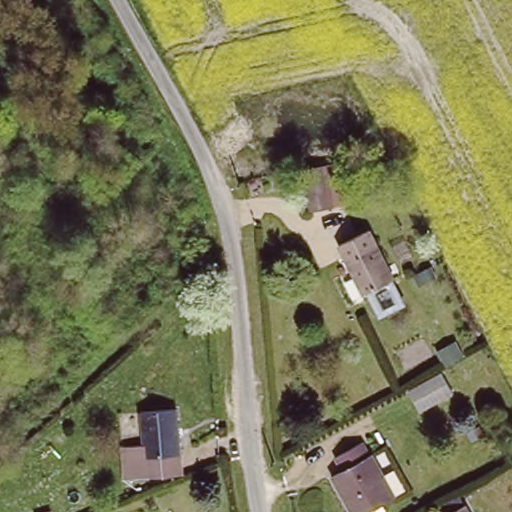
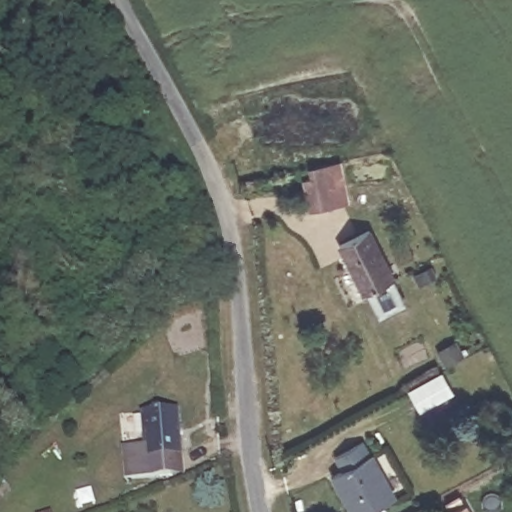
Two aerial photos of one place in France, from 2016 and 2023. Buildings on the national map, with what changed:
unchanged [(327,207),(310,211),(302,183),(320,178),(327,207)]
unchanged [(351,268),(345,255),(376,239),(395,276),(371,288),(363,292),(351,268)]
unchanged [(457,349),(461,356),(445,363),(442,356),(457,349)]
unchanged [(440,378),(450,398),(416,414),(407,395),(440,378)]
unchanged [(175,408),(180,452),(148,455),(143,412),(175,408)]
unchanged [(366,512),(355,512),(333,475),(342,470),(333,456),(363,438),(397,494),(366,512)]
unchanged [(148,455),(180,452),(181,472),(122,478),(120,446),(147,444),(148,455)]
unchanged [(461,496),(470,512),(438,512),(436,509),(461,496)]

